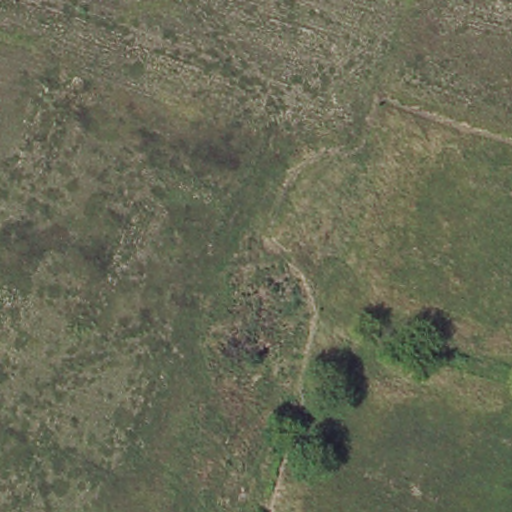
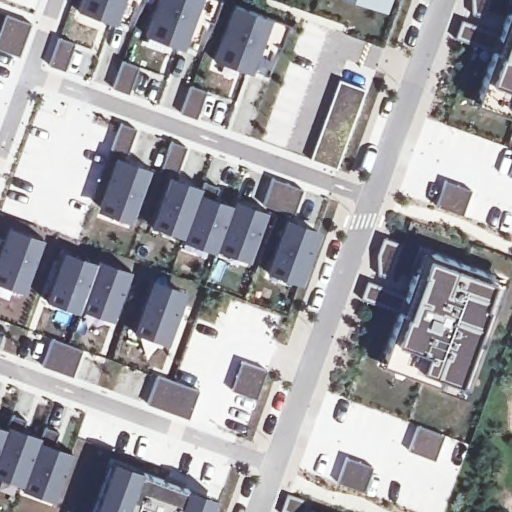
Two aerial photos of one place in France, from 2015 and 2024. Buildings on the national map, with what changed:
new [(115,23),(77,9),(72,8),(75,0),(123,0),(115,23)]
new [(182,49),(144,33),(156,0),(202,0),(182,49)]
new [(382,6),(364,0),(384,0),(382,6)]
new [(500,35),(512,2),(512,115),(476,100),(493,50),(455,37),(462,20),(500,35)]
new [(272,19),(251,74),(212,60),(232,4),(272,19)]
new [(364,90),(336,168),(310,159),(339,80),(364,90)]
new [(137,127),(125,159),(150,168),(130,224),(95,210),(116,155),(109,152),(120,122),(137,127)]
new [(186,148),(176,176),(202,187),(201,190),(230,202),(232,196),(260,209),(272,177),(302,190),(290,216),(322,230),(301,285),(265,272),(287,216),(269,208),(250,261),(217,250),(215,254),(180,240),(181,236),(148,224),(166,171),(160,170),(170,140),(186,148)]
new [(25,292),(0,284),(0,250),(9,225),(43,239),(25,292)]
new [(97,263),(99,257),(130,271),(114,320),(80,308),(79,312),(45,299),(64,250),(97,263)]
new [(502,280),(465,395),(380,362),(400,312),(360,298),(367,280),(407,294),(424,250),(502,280)]
new [(187,292),(168,343),(132,331),(152,277),(187,292)]
new [(199,390),(189,417),(147,402),(157,375),(199,390)]
new [(7,422),(41,436),(39,440),(72,452),(53,501),(20,488),(20,486),(0,478),(0,424),(5,426),(7,422)]
new [(210,512),(92,512),(111,460),(215,497),(210,512)]

